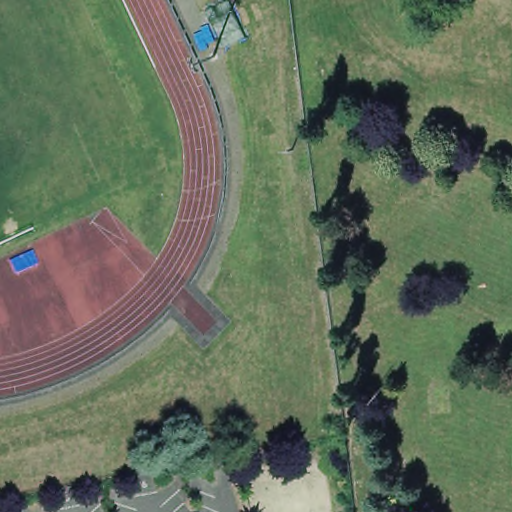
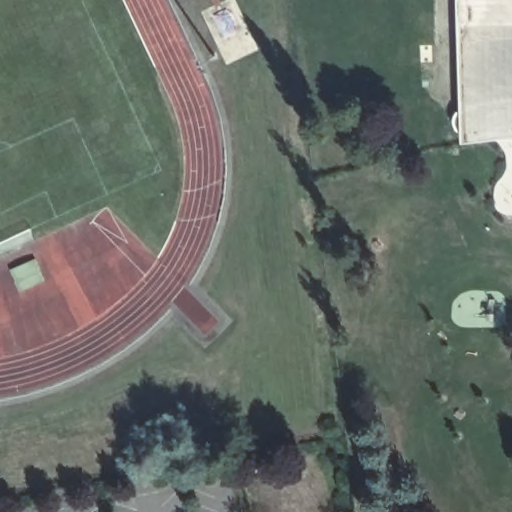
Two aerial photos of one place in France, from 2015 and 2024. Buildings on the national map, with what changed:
new [(462,144),(457,0),(512,0),(512,137),(462,144)]

